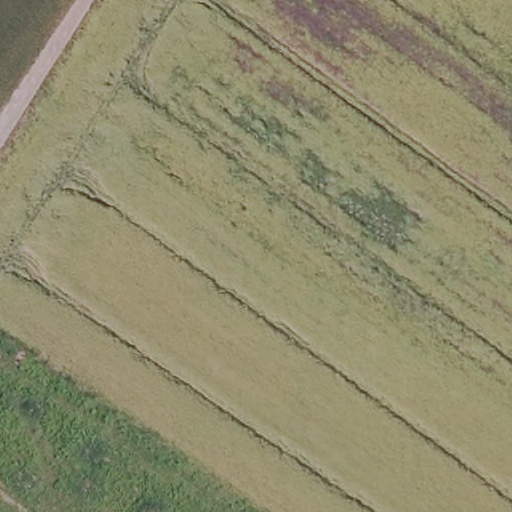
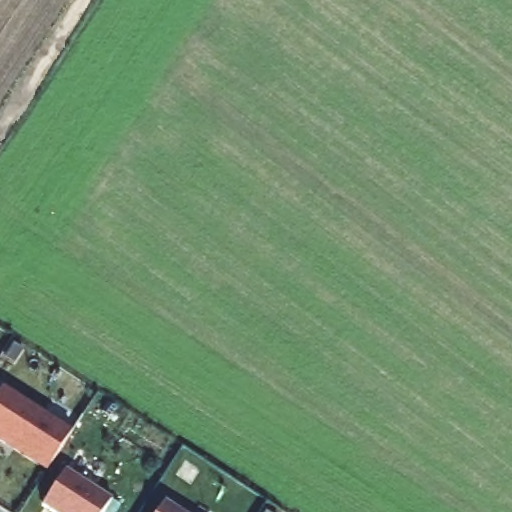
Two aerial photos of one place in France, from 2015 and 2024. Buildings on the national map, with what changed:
new [(0,389),(2,386),(70,430),(47,469),(0,440),(0,389)]
new [(45,503),(68,468),(110,498),(102,512),(57,512),(45,503)]
new [(165,502),(179,512),(159,512),(165,502)]

